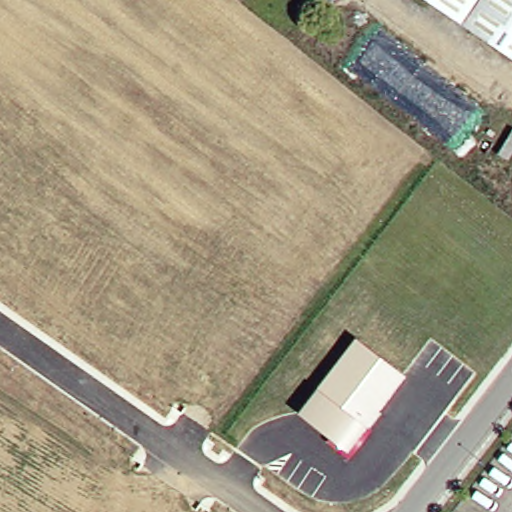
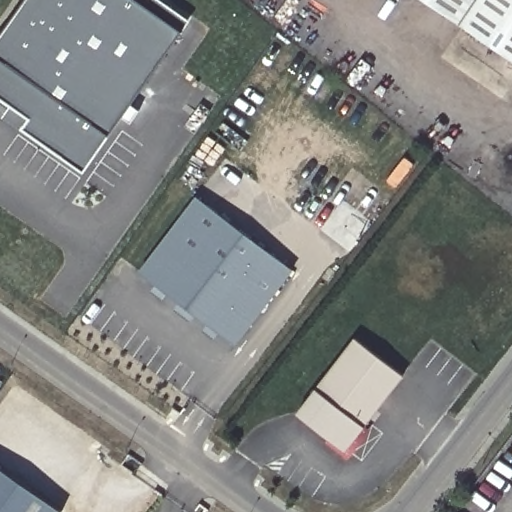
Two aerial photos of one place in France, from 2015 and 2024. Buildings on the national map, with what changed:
new [(124,116),(86,172),(65,157),(22,130),(29,120),(0,100),(0,35),(1,33),(24,0),(140,0),(176,25),(160,50),(165,54),(132,104),(140,109),(132,121),(124,116)]
new [(190,18),(165,54),(160,50),(176,25),(140,0),(163,0),(190,18)]
unchanged [(416,0),(512,0),(512,65),(416,0)]
new [(0,35),(0,31),(1,33),(0,35)]
new [(22,130),(65,157),(63,160),(0,118),(0,100),(29,120),(22,130)]
new [(195,197),(227,221),(170,297),(138,273),(195,197)]
new [(227,221),(260,246),(202,322),(170,297),(227,221)]
new [(260,246),(291,270),(235,346),(202,322),(260,246)]
unchanged [(316,388),(355,337),(405,375),(366,427),(345,452),(296,413),(316,388)]
new [(61,512),(0,512),(0,467),(62,510),(61,512)]

